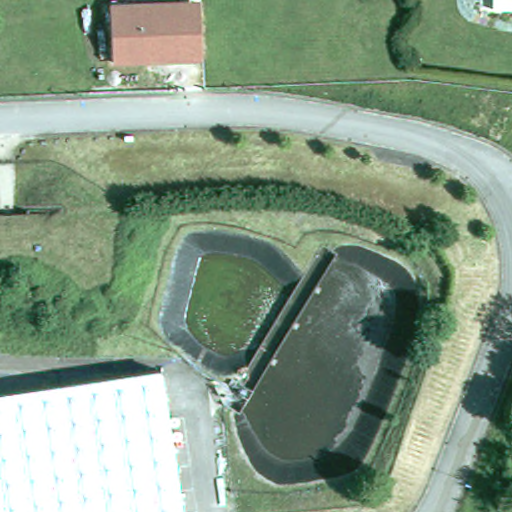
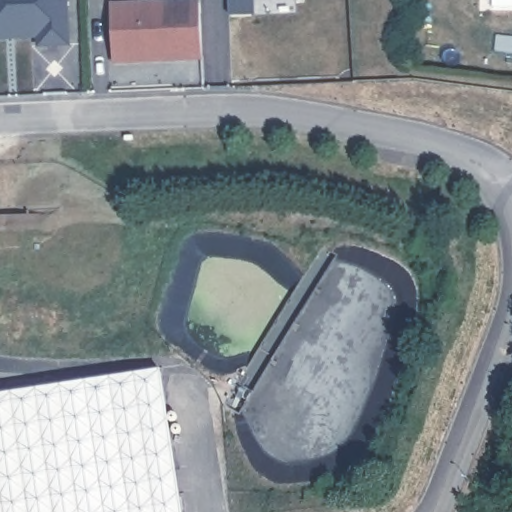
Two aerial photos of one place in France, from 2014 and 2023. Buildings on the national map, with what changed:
new [(38,47),(37,39),(0,41),(0,0),(67,0),(69,45),(38,47)]
unchanged [(200,0),(202,59),(113,63),(111,2),(200,0)]
new [(256,10),(231,11),(231,0),(255,0),(256,10)]
unchanged [(181,512),(0,512),(0,394),(160,369),(181,512)]

